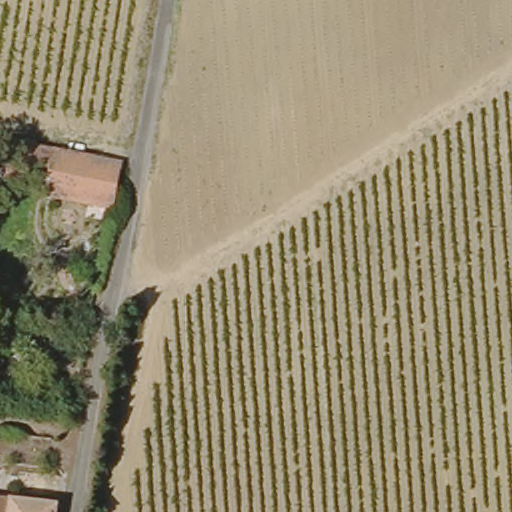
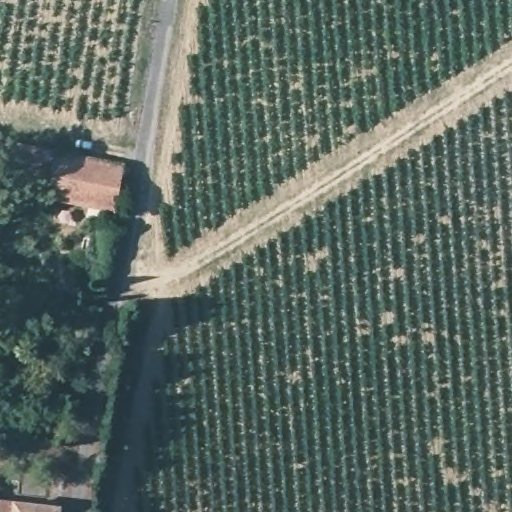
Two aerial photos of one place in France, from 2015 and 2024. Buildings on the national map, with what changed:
unchanged [(0,139),(52,145),(45,192),(0,183),(0,139)]
unchanged [(122,152),(110,215),(83,210),(44,202),(45,192),(52,145),(122,152)]
unchanged [(53,512),(0,512),(0,503),(53,511),(53,512)]

